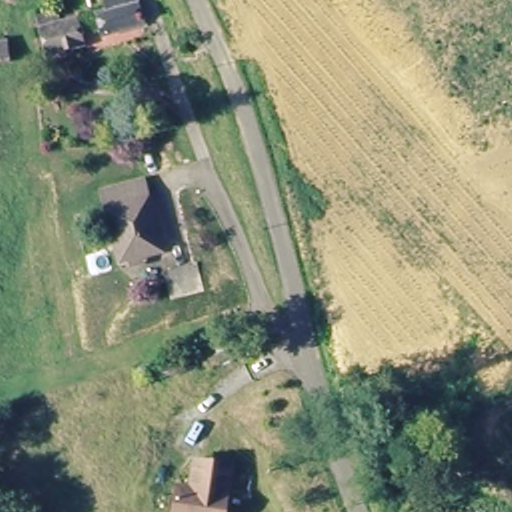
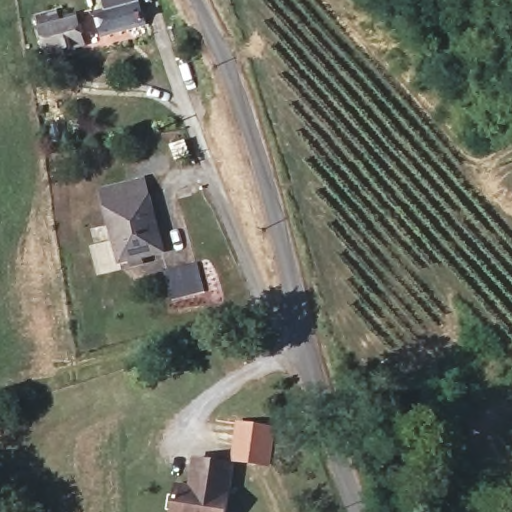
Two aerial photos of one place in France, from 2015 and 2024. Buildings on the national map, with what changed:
unchanged [(144,24),(109,32),(101,11),(98,0),(136,0),(137,2),(144,24)]
unchanged [(85,17),(90,39),(34,54),(29,31),(85,17)]
demolished [(15,53),(0,59),(0,36),(7,34),(15,53)]
unchanged [(143,182),(163,251),(125,265),(106,195),(143,182)]
unchanged [(178,276),(203,267),(212,292),(184,301),(175,277),(178,276)]
new [(275,427),(271,466),(232,462),(237,437),(234,436),(235,422),(275,427)]
unchanged [(175,488),(190,490),(192,472),(193,463),(231,468),(230,478),(226,512),(172,512),(175,488)]

